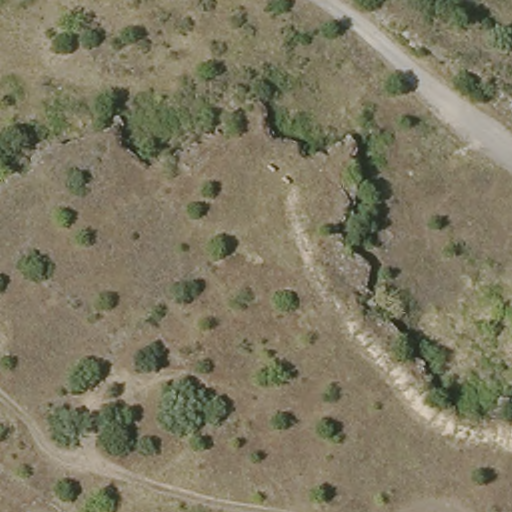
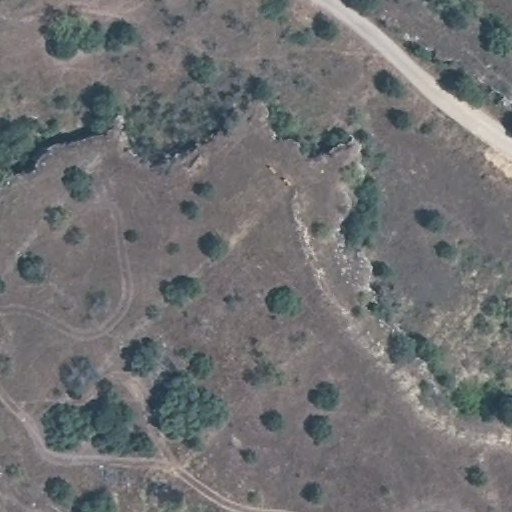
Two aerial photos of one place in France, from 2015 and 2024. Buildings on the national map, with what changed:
unchanged [(208,144),(220,159),(209,169),(196,154),(208,144)]

